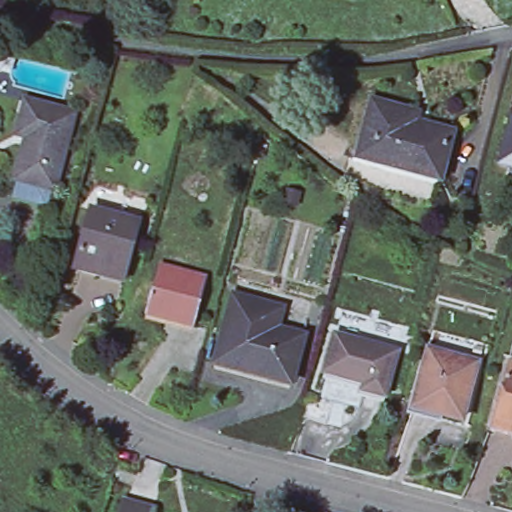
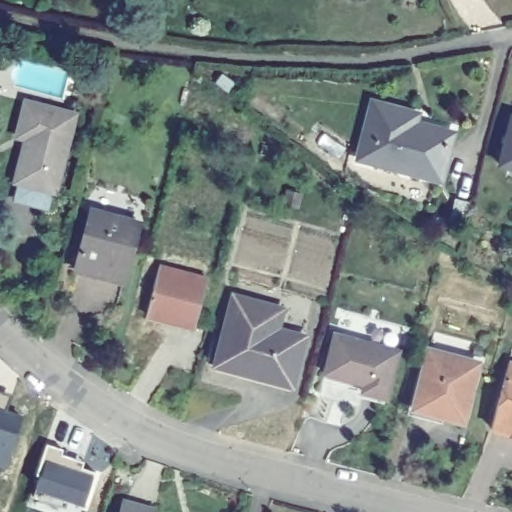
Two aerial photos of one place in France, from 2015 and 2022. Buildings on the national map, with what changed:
unchanged [(20,198),(24,181),(22,180),(33,137),(23,135),(32,100),(80,113),(61,190),(58,189),(53,206),(20,198)]
unchanged [(415,116),(413,125),(452,136),(440,180),(357,158),(372,104),(415,116)]
unchanged [(512,123),(512,170),(500,166),(512,123)]
unchanged [(138,224),(122,283),(77,271),(93,211),(138,224)]
unchanged [(207,279),(193,328),(147,315),(160,266),(207,279)]
unchanged [(269,310),(263,331),(302,341),(290,388),(215,368),(233,301),(269,310)]
unchanged [(397,352),(385,398),(360,391),(362,384),(324,374),(334,336),(397,352)]
unchanged [(477,363),(462,421),(413,408),(428,350),(477,363)]
unchanged [(508,363),(512,364),(512,435),(490,429),(508,363)]
new [(62,449),(60,454),(83,461),(82,467),(94,471),(82,506),(67,501),(65,508),(32,500),(35,490),(38,476),(35,475),(46,444),(62,449)]
unchanged [(128,499),(158,507),(157,512),(125,512),(128,499)]

